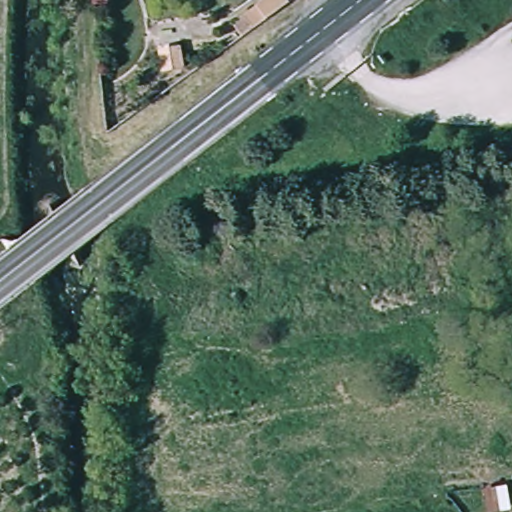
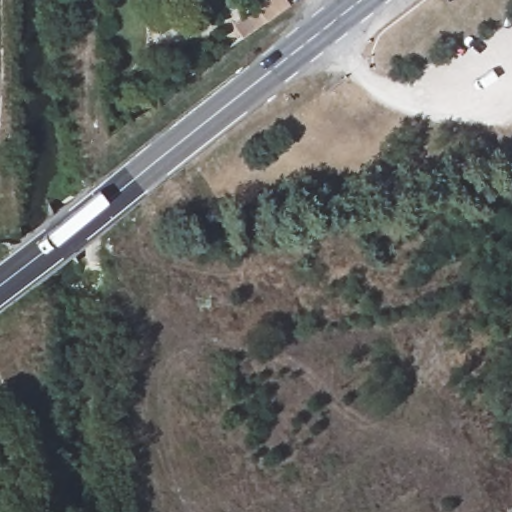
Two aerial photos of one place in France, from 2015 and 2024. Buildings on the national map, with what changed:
unchanged [(266,21),(242,39),(232,25),(264,0),(286,0),(289,4),(266,21)]

